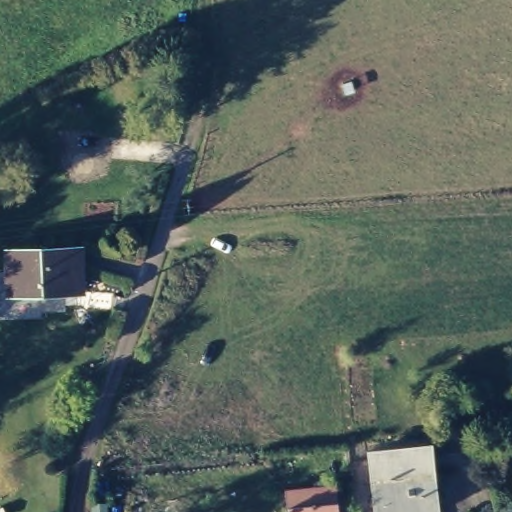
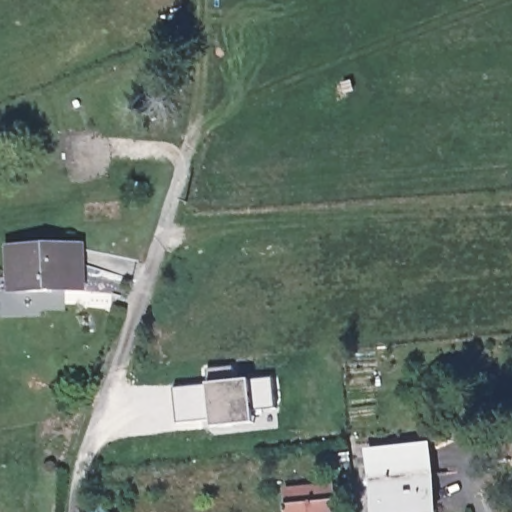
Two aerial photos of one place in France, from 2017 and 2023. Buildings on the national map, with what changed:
unchanged [(6,269),(6,248),(80,246),(80,287),(20,288),(6,289),(6,269)]
new [(235,420),(223,421),(215,414),(180,418),(176,382),(210,378),(209,364),(236,361),(237,376),(275,372),(278,402),(255,405),(257,417),(235,420)]
unchanged [(425,444),(431,511),(427,512),(374,512),(366,451),(425,444)]
unchanged [(327,486),(330,512),(284,512),(282,489),(327,486)]
unchanged [(92,501),(107,502),(107,512),(92,512),(92,501)]

